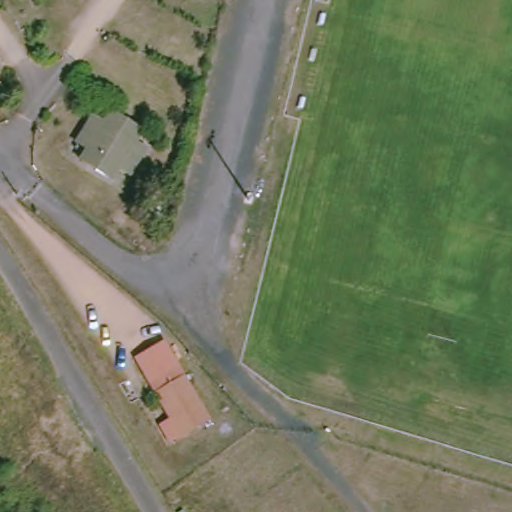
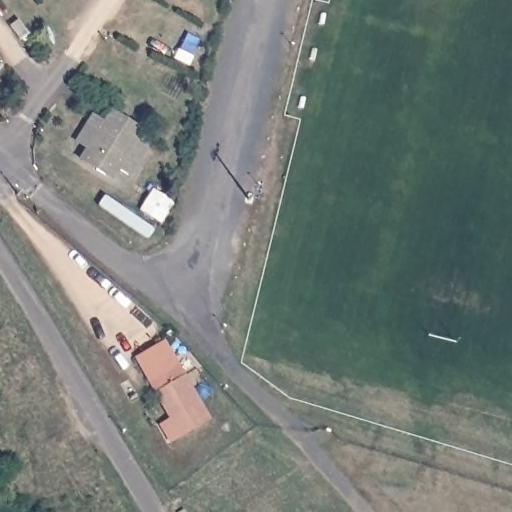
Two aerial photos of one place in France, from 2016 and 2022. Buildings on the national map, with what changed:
unchanged [(123,173),(114,167),(105,179),(77,159),(83,147),(74,140),(88,116),(98,123),(107,110),(135,128),(127,140),(139,148),(123,173)]
unchanged [(183,440),(156,396),(134,356),(167,336),(184,380),(209,424),(183,440)]

